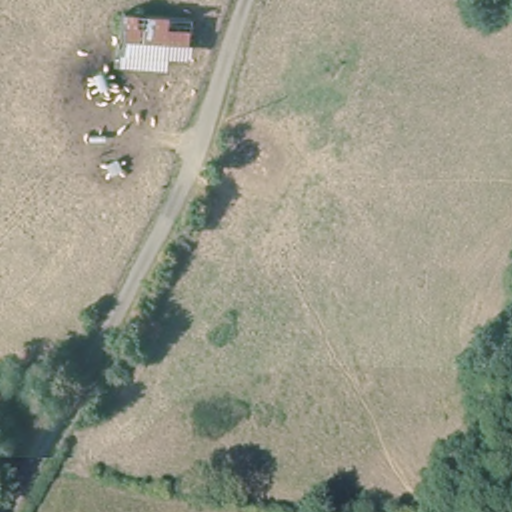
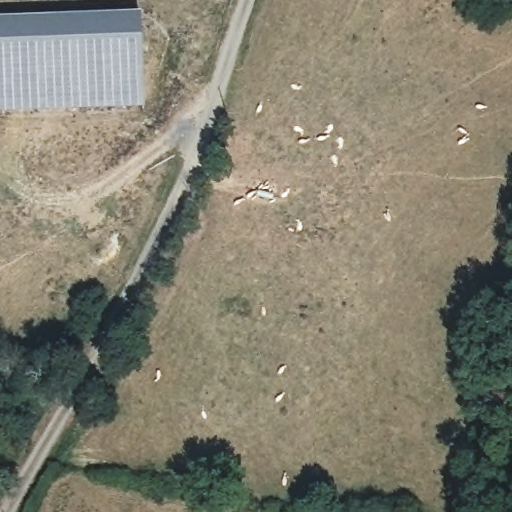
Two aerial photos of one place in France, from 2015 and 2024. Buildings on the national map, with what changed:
demolished [(118,60),(122,5),(202,10),(198,56),(174,54),(171,66),(118,60)]
new [(0,115),(0,22),(139,16),(143,110),(0,115)]

